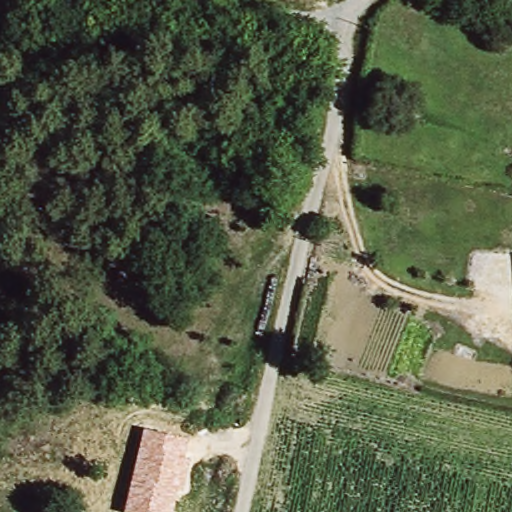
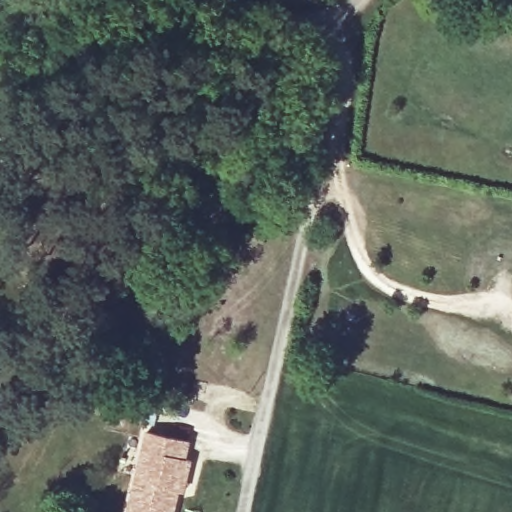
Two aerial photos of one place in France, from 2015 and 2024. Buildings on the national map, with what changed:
unchanged [(187,458),(193,459),(186,494),(180,493),(175,512),(128,512),(146,431),(191,440),(187,458)]

